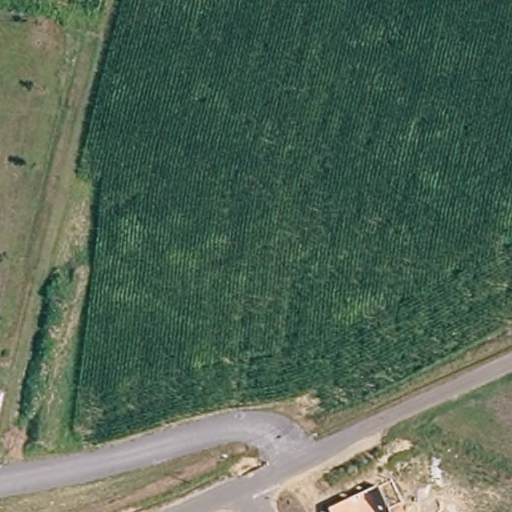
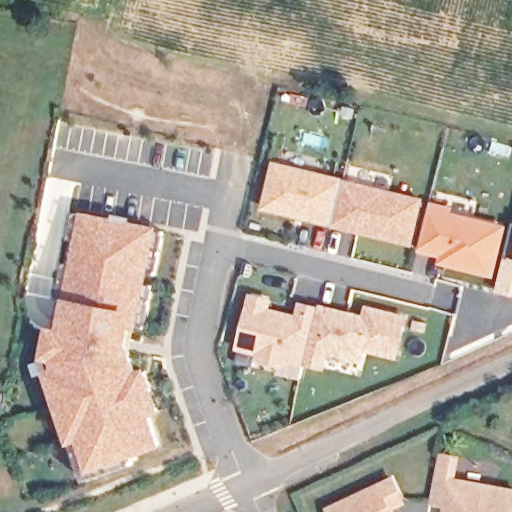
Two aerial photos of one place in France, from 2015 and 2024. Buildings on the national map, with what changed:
new [(424,198),(413,246),(261,210),(273,162),(424,198)]
new [(454,208),(454,214),(507,226),(494,278),(439,266),(440,256),(420,252),(431,203),(454,208)]
new [(158,227),(134,348),(139,370),(147,367),(163,413),(154,416),(164,447),(91,472),(79,442),(70,444),(44,370),(54,368),(53,361),(42,359),(48,326),(59,328),(65,300),(81,212),(158,227)]
new [(512,241),(512,296),(498,292),(512,241)]
new [(272,297),(270,310),(296,315),(300,301),(364,315),(366,306),(409,316),(399,360),(367,352),(364,364),(330,355),(327,370),(305,365),(301,381),(283,376),(285,367),(261,363),(257,359),(255,369),(237,365),(239,353),(235,352),(249,295),(272,297)]
new [(437,466),(439,453),(456,456),(453,469),(452,478),(512,489),(512,512),(446,512),(447,503),(430,500),(437,466)]
new [(396,478),(409,506),(397,512),(329,512),(327,508),(396,478)]

